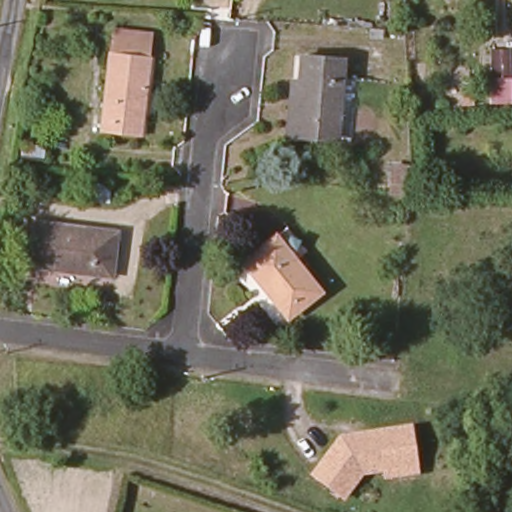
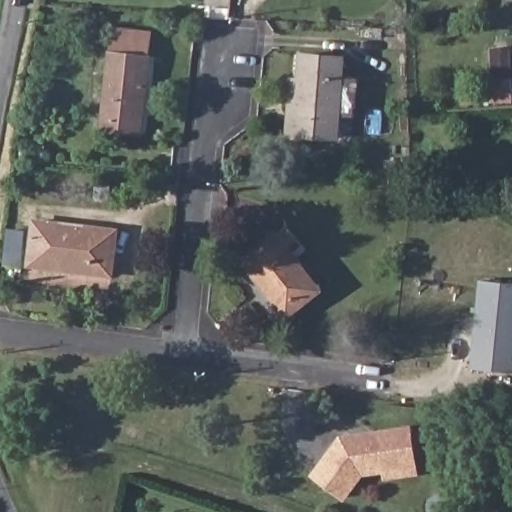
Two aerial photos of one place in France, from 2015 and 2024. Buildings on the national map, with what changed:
unchanged [(139,136),(101,132),(110,49),(114,50),(116,29),(151,31),(139,136)]
new [(492,104),(491,49),(512,48),(512,104),(492,104)]
unchanged [(293,77),(303,78),(306,55),(349,59),(342,141),(299,136),(288,135),(293,77)]
unchanged [(400,194),(402,173),(418,175),(417,195),(400,194)]
unchanged [(110,276),(32,265),(38,223),(116,232),(110,276)]
unchanged [(287,319),(245,265),(275,241),(318,294),(287,319)]
new [(472,369),(480,280),(512,283),(512,372),(472,369)]
unchanged [(338,434),(412,423),(419,474),(384,479),(382,472),(364,475),(344,502),(309,473),(338,434)]

